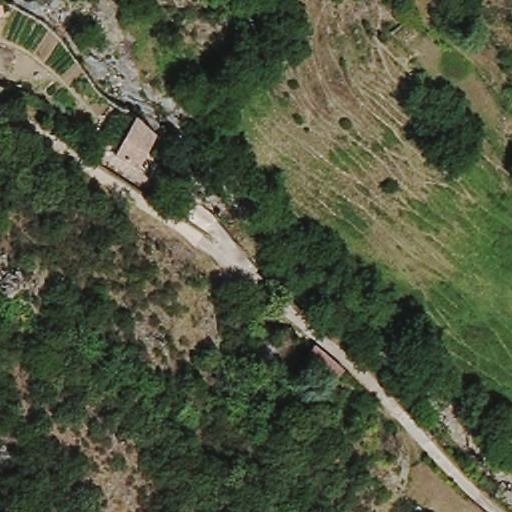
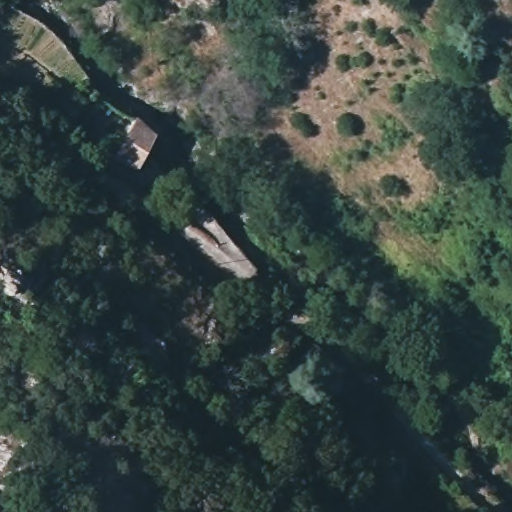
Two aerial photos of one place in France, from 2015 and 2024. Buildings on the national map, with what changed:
unchanged [(156,129),(135,173),(116,155),(131,115),(156,129)]
unchanged [(316,358),(362,395),(338,422),(293,385),(312,363),(316,358)]

